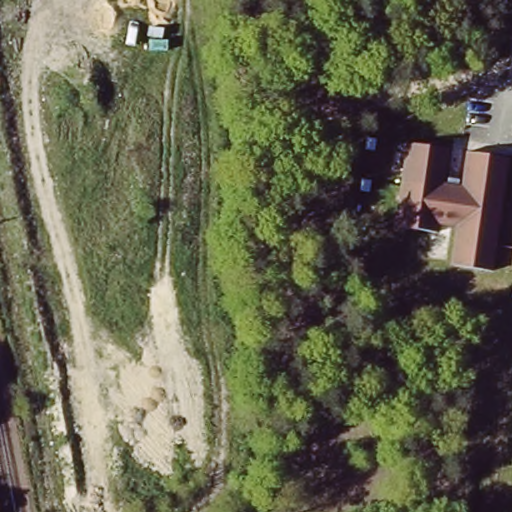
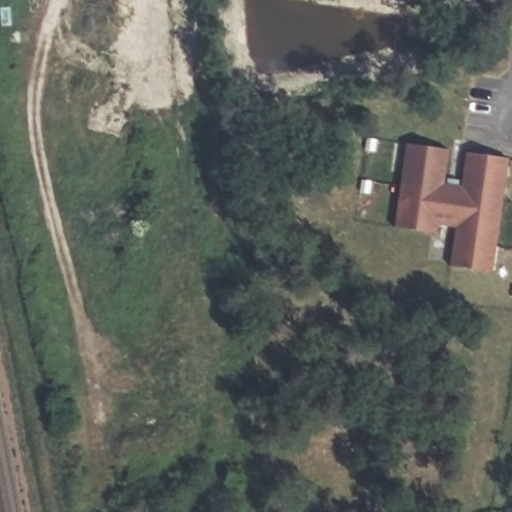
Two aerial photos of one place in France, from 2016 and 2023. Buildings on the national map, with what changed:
unchanged [(444,146),(439,180),(461,183),(465,150),(507,156),(491,270),(451,265),(454,227),(437,224),(436,232),(394,226),(404,142),(444,146)]

